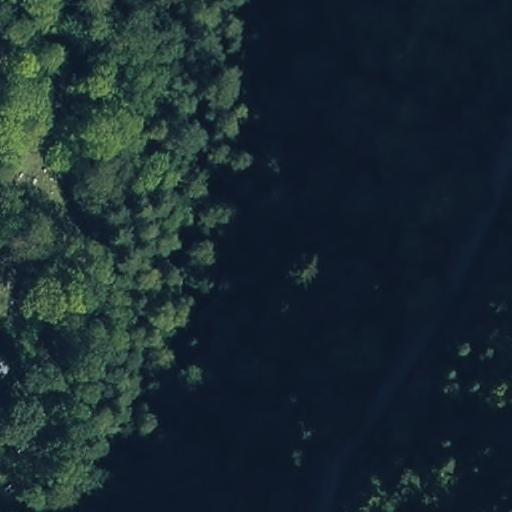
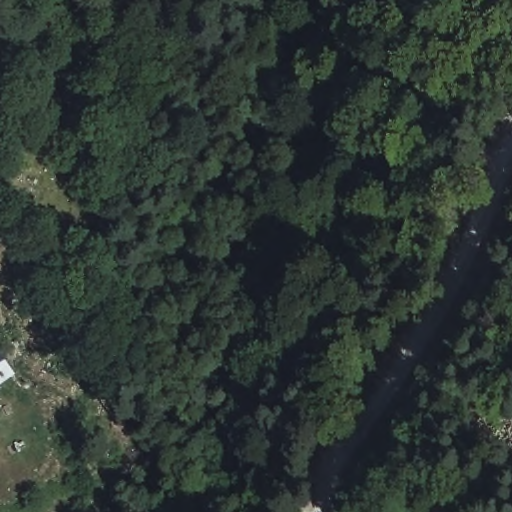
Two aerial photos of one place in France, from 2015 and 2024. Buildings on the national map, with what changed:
unchanged [(0,383),(0,359),(10,376),(0,383)]

